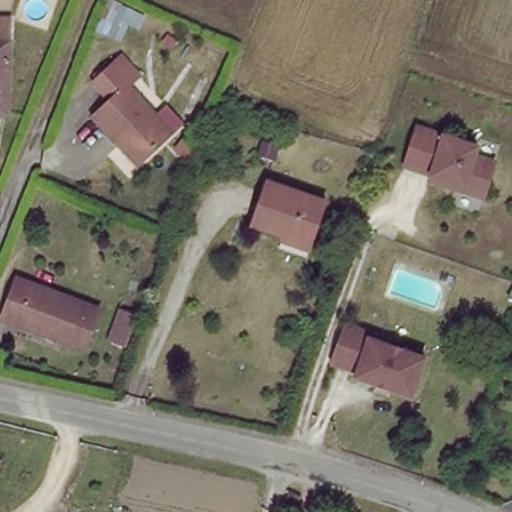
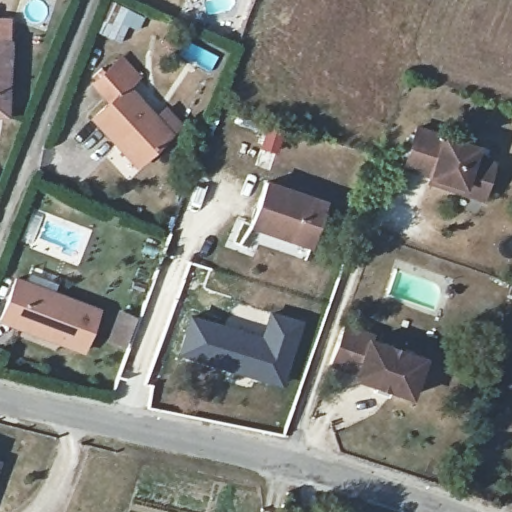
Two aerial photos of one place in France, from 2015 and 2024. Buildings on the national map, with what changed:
new [(94,31),(107,0),(111,0),(145,16),(138,30),(128,26),(120,42),(94,31)]
unchanged [(12,109),(0,109),(0,37),(13,37),(12,109)]
unchanged [(107,75),(134,51),(153,71),(142,81),(179,120),(147,150),(108,106),(123,93),(107,75)]
unchanged [(437,170),(410,161),(424,122),(484,144),(481,154),(501,160),(488,195),(467,187),(434,176),(437,170)]
unchanged [(269,185),(328,203),(314,245),(258,226),(269,185)]
unchanged [(17,280),(94,310),(80,348),(46,336),(48,331),(17,318),(14,324),(3,320),(17,280)]
new [(188,313),(261,331),(269,309),(306,320),(284,388),(176,355),(188,313)]
unchanged [(109,340),(118,315),(136,320),(127,346),(109,340)]
unchanged [(375,390),(378,382),(358,375),(359,371),(331,362),(336,347),(344,324),(373,333),(371,338),(426,355),(413,393),(393,387),(390,394),(375,390)]

